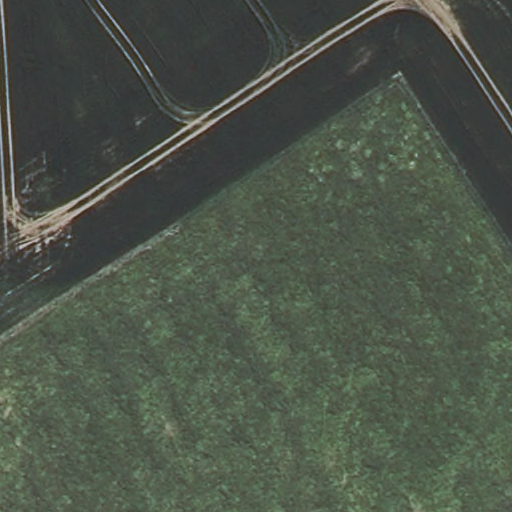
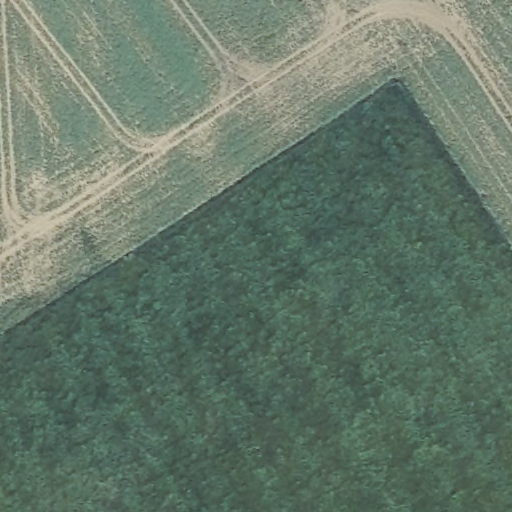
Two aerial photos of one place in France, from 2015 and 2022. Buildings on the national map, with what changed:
[]

